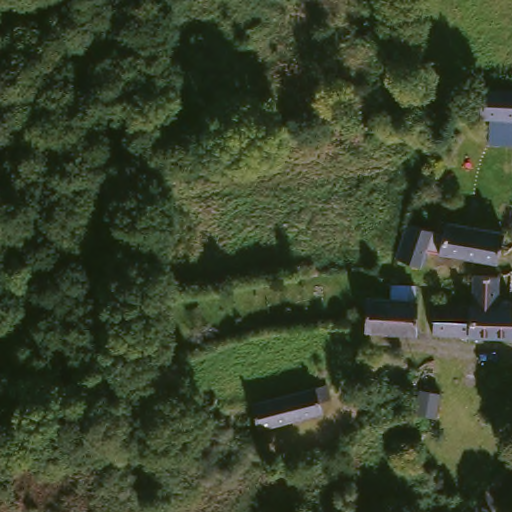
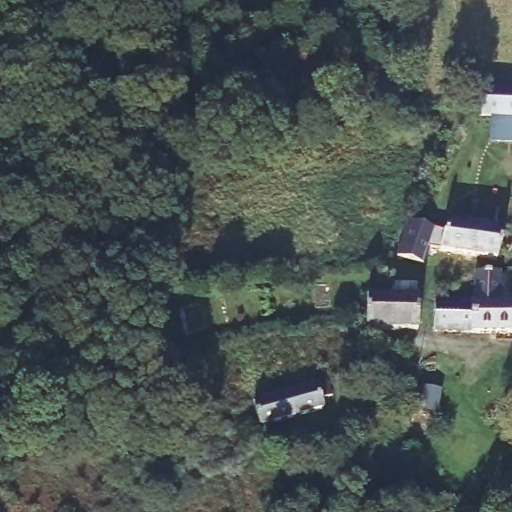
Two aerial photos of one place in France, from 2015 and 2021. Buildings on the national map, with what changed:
unchanged [(484,147),(486,122),(478,121),(466,122),(461,121),(461,97),(464,92),(478,92),(512,92),(512,147),(484,147)]
unchanged [(511,218),(512,218),(512,233),(509,233),(505,231),(503,228),(503,224),(503,221),(507,218),(511,218)]
unchanged [(491,262),(436,254),(439,224),(458,226),(477,228),(493,230),(495,234),(491,262)]
unchanged [(423,237),(415,269),(398,265),(391,263),(399,231),(423,237)]
unchanged [(467,285),(491,286),(489,311),(504,312),(508,312),(507,345),(463,344),(465,313),(467,285)]
unchanged [(373,306),(383,306),(384,294),(394,295),(404,295),(403,312),(408,313),(406,338),(355,336),(355,325),(356,307),(373,306)]
unchanged [(507,345),(508,312),(512,312),(512,345),(507,345)]
unchanged [(428,344),(429,313),(465,313),(463,344),(428,344)]
unchanged [(322,399),(313,403),(316,415),(252,433),(246,405),(318,385),(322,399)]

